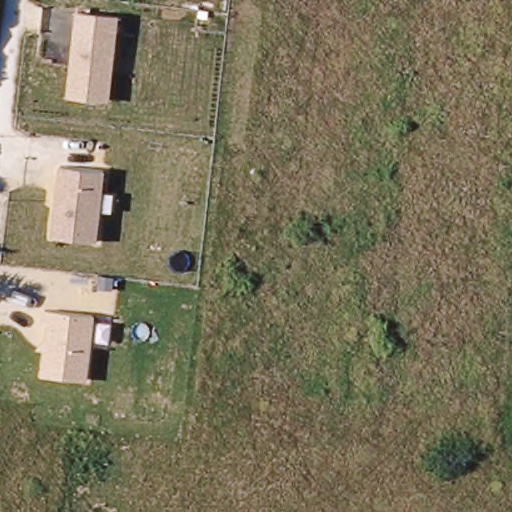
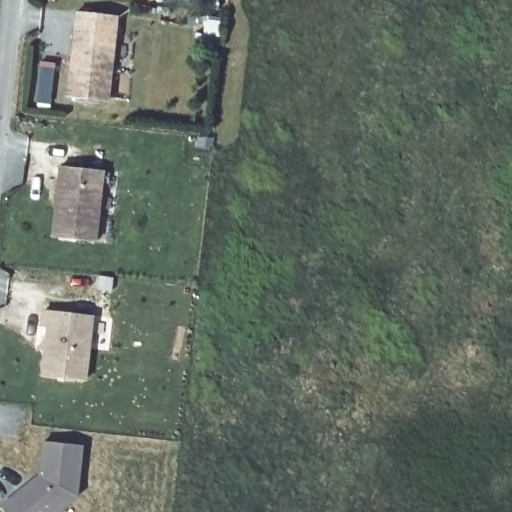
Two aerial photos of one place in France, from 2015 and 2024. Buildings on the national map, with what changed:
unchanged [(119,17),(109,101),(66,96),(75,12),(119,17)]
unchanged [(104,171),(97,242),(53,237),(59,166),(104,171)]
unchanged [(95,316),(87,382),(40,376),(45,329),(40,329),(42,309),(95,316)]
new [(30,487),(36,483),(40,444),(58,446),(47,512),(0,512),(0,506),(25,487),(30,487)]
new [(58,446),(79,448),(73,497),(53,512),(47,512),(58,446)]

